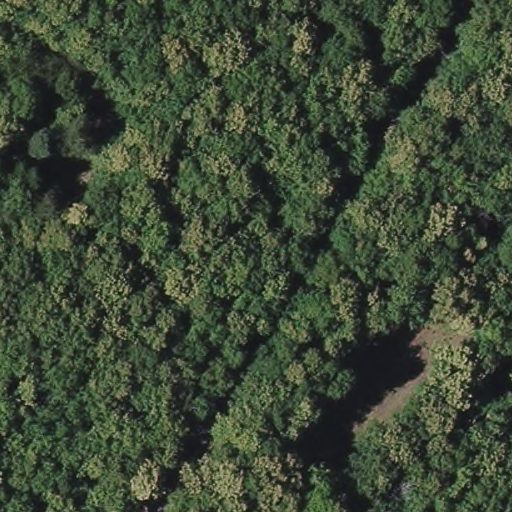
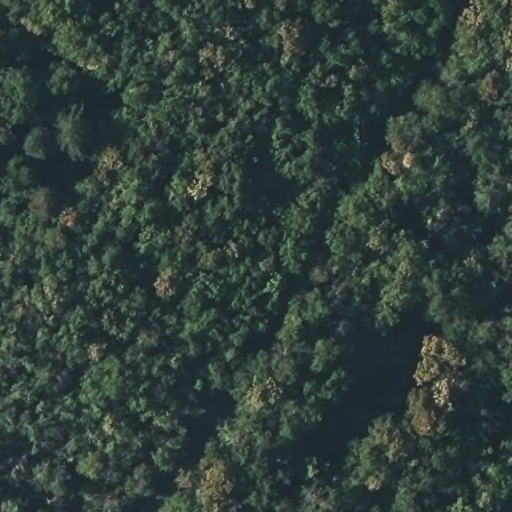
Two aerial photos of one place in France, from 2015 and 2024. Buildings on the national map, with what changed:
unchanged [(0,165),(13,174),(2,189),(0,187),(0,165)]

